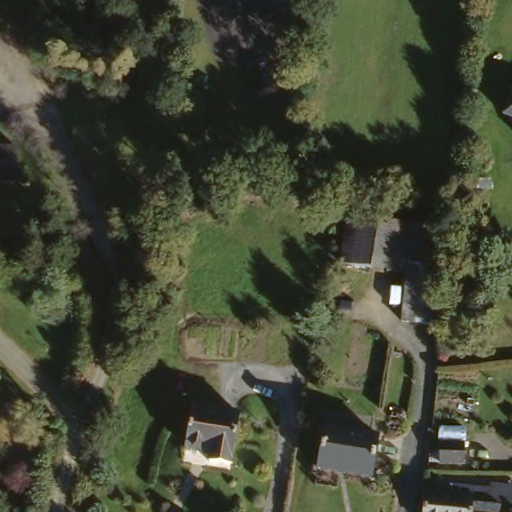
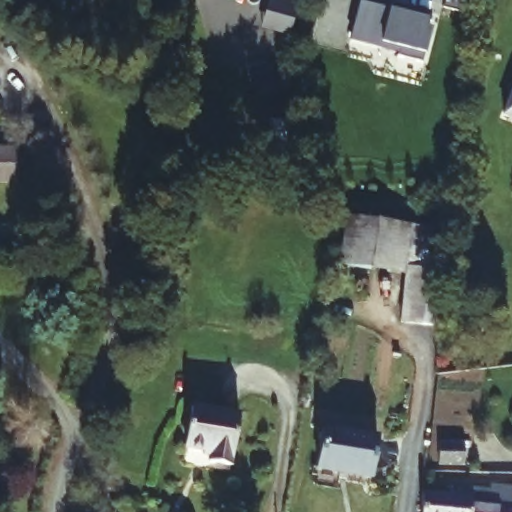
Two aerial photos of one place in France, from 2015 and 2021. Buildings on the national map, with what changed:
new [(430,15),(426,31),(431,33),(422,63),(397,58),(399,49),(382,45),(379,49),(351,41),(357,16),(363,17),(366,6),(389,11),(392,5),(430,15)]
unchanged [(512,114),(503,111),(512,87),(512,114)]
unchanged [(14,143),(14,178),(0,177),(0,143),(14,143)]
unchanged [(411,266),(410,273),(345,262),(352,215),(417,226),(411,266)]
unchanged [(444,269),(439,324),(405,321),(410,273),(411,266),(444,269)]
unchanged [(192,407),(238,414),(230,465),(209,462),(209,452),(185,448),(192,407)]
unchanged [(324,428),(378,437),(370,477),(317,468),(324,428)]
unchanged [(424,493),(449,495),(451,487),(471,488),(471,489),(490,490),(491,486),(512,488),(512,512),(423,512),(424,493)]

